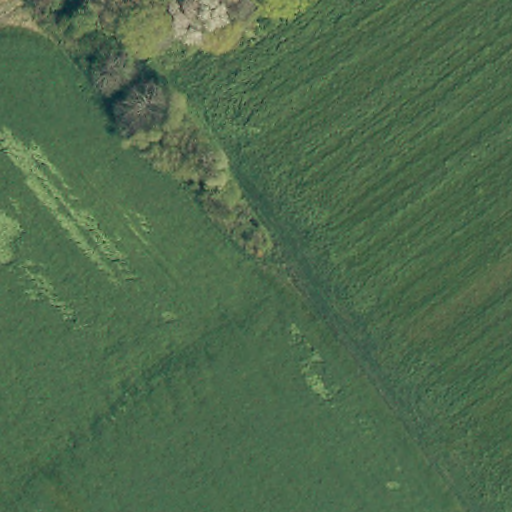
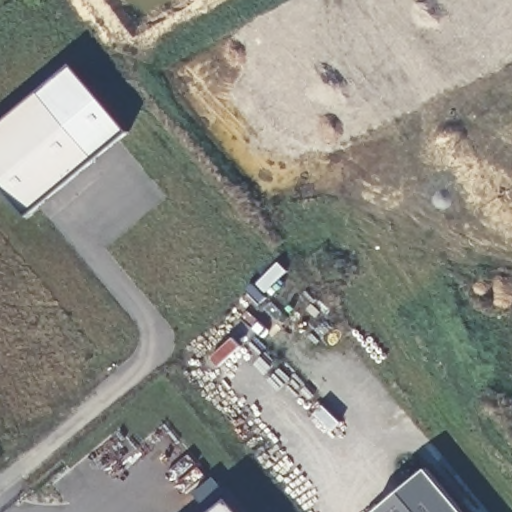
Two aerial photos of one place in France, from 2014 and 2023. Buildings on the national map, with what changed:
new [(0,124),(73,64),(129,131),(26,215),(0,185),(0,124)]
new [(464,512),(376,512),(427,468),(464,512)]

